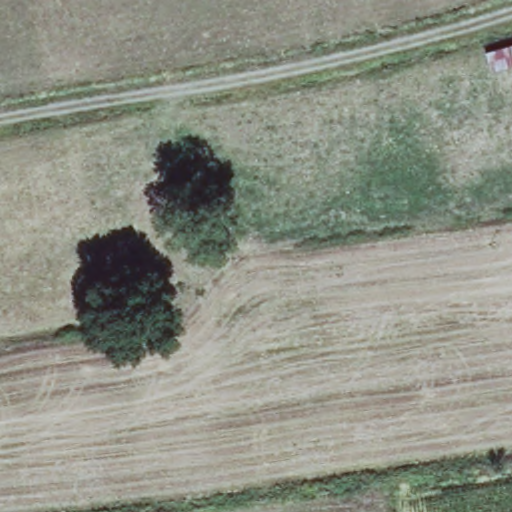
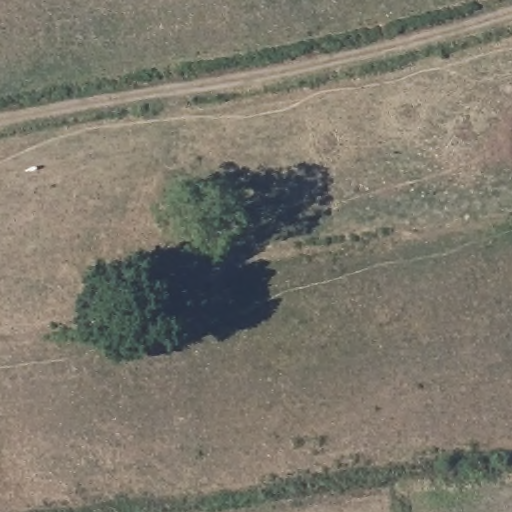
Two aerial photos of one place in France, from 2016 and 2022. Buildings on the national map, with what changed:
unchanged [(512,49),(501,52),(497,38),(512,34),(512,49)]

